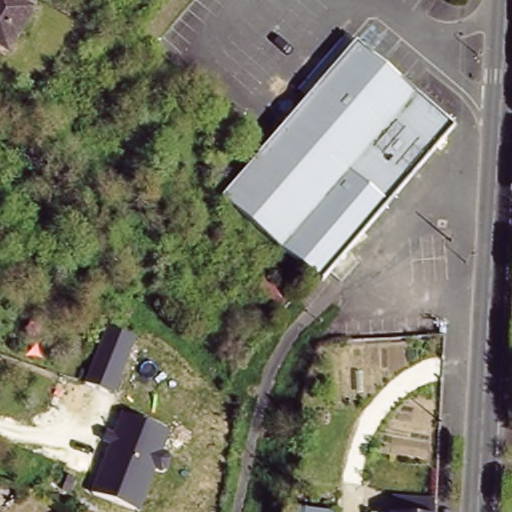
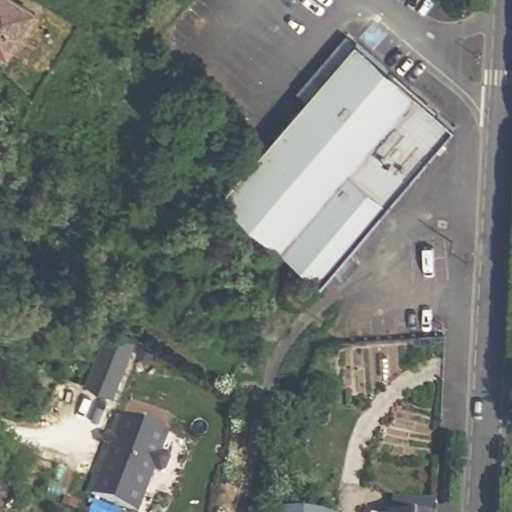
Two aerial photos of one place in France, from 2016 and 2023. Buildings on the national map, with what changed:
unchanged [(0,38),(0,0),(26,0),(37,6),(14,46),(0,38)]
unchanged [(361,36),(460,123),(325,277),(314,268),(228,192),(266,149),(361,36)]
unchanged [(289,294),(281,307),(256,291),(265,277),(289,294)]
unchanged [(169,434),(139,511),(92,493),(122,416),(169,434)]
unchanged [(343,512),(288,512),(288,505),(344,508),(343,512)]
unchanged [(389,512),(390,510),(436,512),(389,512)]

